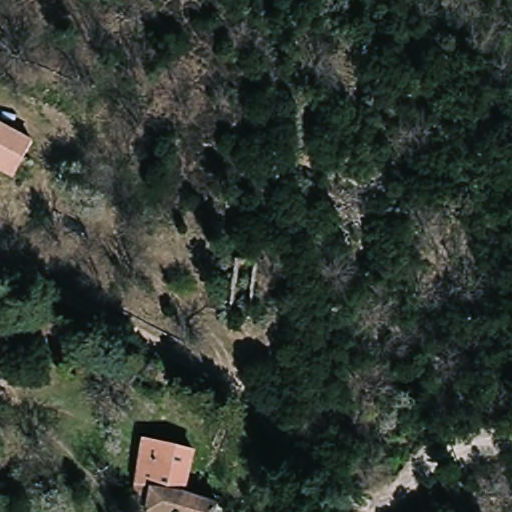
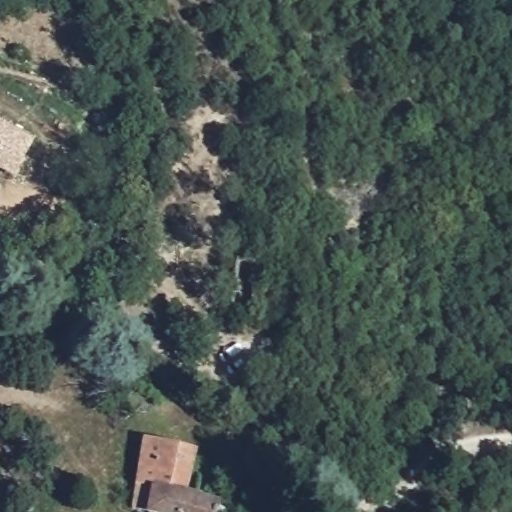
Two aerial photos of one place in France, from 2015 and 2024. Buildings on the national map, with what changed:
unchanged [(0,164),(0,115),(36,135),(18,174),(0,164)]
unchanged [(229,512),(167,512),(151,509),(156,484),(150,482),(141,479),(151,449),(160,452),(163,447),(191,458),(192,458),(183,487),(233,501),(229,512)]

